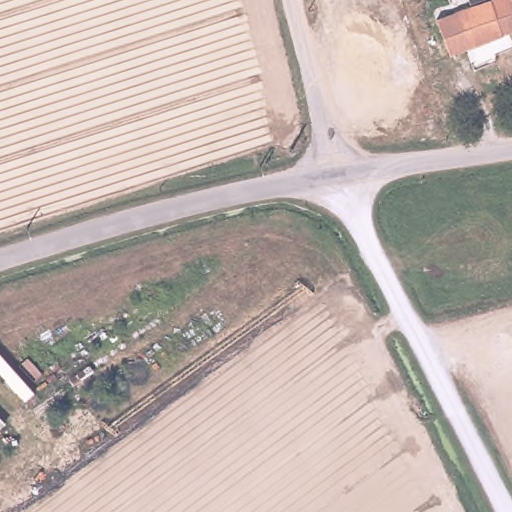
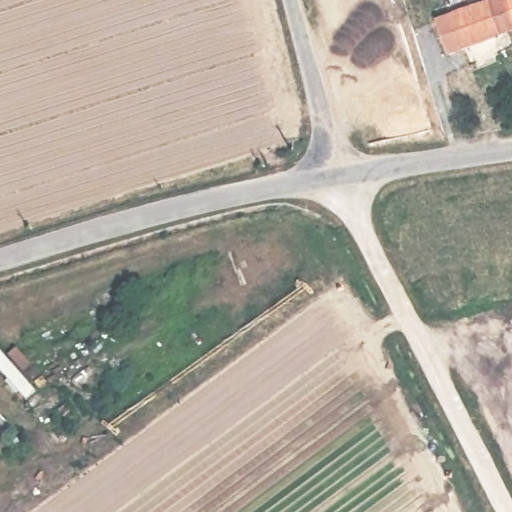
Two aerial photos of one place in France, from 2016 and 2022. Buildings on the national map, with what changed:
unchanged [(445,18),(492,0),(512,0),(512,32),(458,53),(445,18)]

